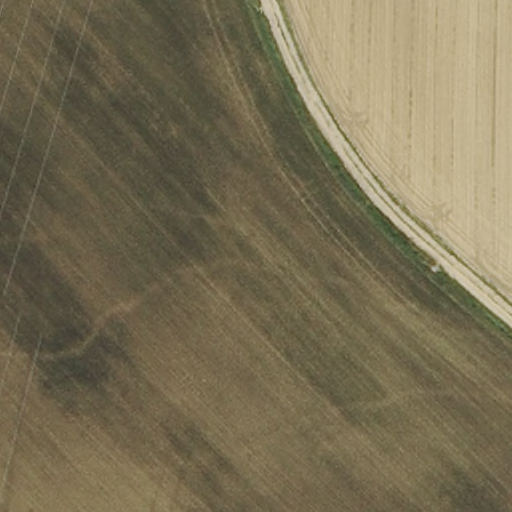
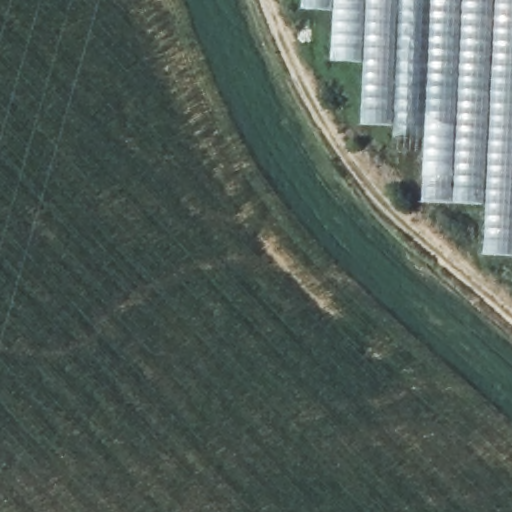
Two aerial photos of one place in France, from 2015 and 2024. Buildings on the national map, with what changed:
new [(482,256),(483,206),(420,204),(422,155),(392,153),(392,126),(360,126),(362,64),(331,63),(331,11),(303,9),(303,0),(512,0),(512,257),(482,256)]

